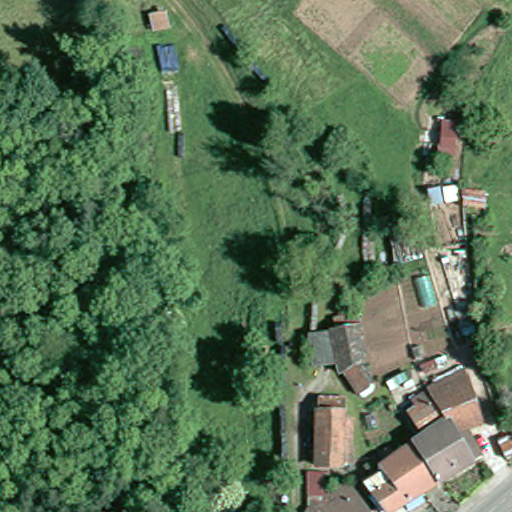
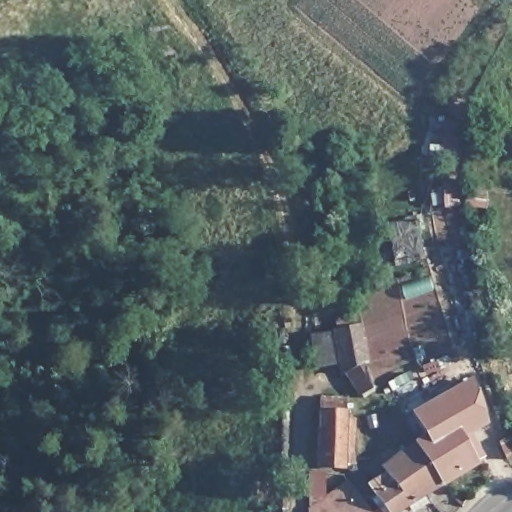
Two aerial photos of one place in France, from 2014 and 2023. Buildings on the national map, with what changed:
unchanged [(359,325),(367,367),(381,386),(367,399),(349,380),(339,381),(337,368),(315,372),(312,334),(359,325)]
unchanged [(420,423),(427,419),(420,406),(462,375),(471,390),(475,387),(486,430),(462,444),(477,472),(450,489),(424,453),(434,446),(420,423)]
unchanged [(325,466),(324,428),(328,428),(328,413),(352,413),(352,427),(352,464),(325,466)]
unchanged [(512,444),(512,462),(509,464),(497,440),(504,436),(506,435),(507,435),(512,444)]
unchanged [(450,489),(415,512),(382,512),(377,504),(397,492),(382,467),(399,457),(412,450),(416,457),(424,453),(450,489)]
unchanged [(354,490),(370,512),(325,512),(354,490)]

